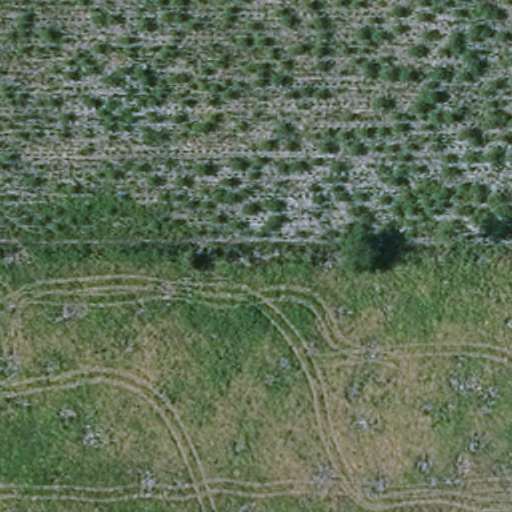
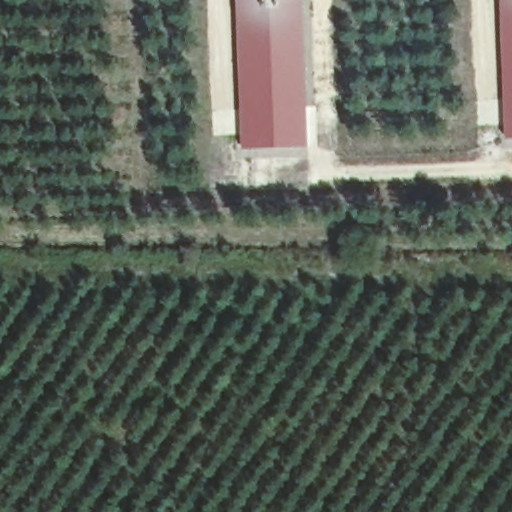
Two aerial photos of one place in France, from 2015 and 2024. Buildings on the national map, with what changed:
new [(242,149),(237,0),(303,0),(308,146),(242,149)]
new [(506,138),(502,0),(512,0),(512,138),(506,138)]

